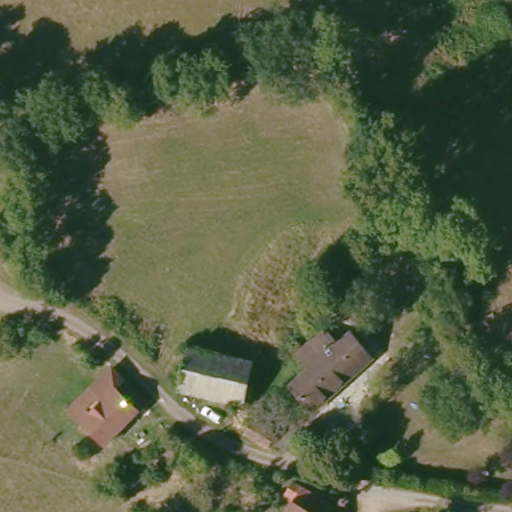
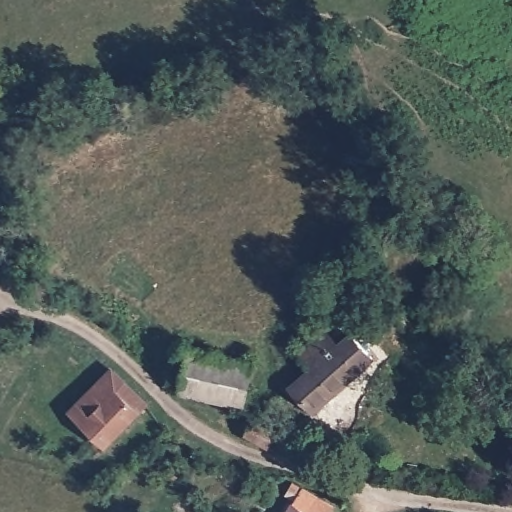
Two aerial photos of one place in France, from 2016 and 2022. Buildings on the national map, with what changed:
unchanged [(304,369),(291,354),(324,328),(334,340),(348,330),(371,357),(306,414),(283,388),(304,369)]
unchanged [(191,350),(253,363),(246,406),(181,396),(190,353),(191,350)]
unchanged [(75,403),(84,411),(118,376),(141,398),(95,446),(73,423),(65,416),(75,403)]
unchanged [(253,421),(276,433),(269,447),(267,447),(246,435),(253,421)]
unchanged [(326,512),(276,512),(283,500),(274,495),(283,481),(329,506),(326,512)]

